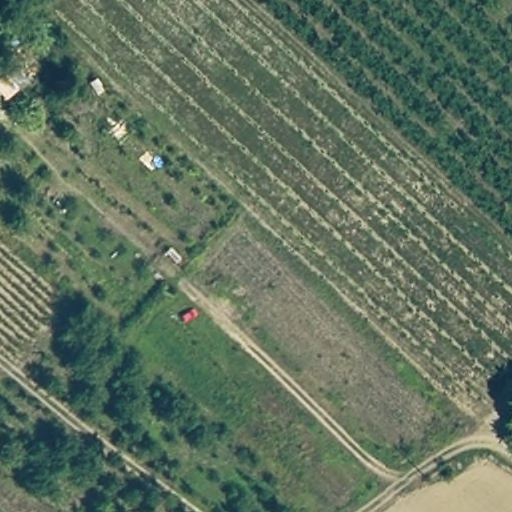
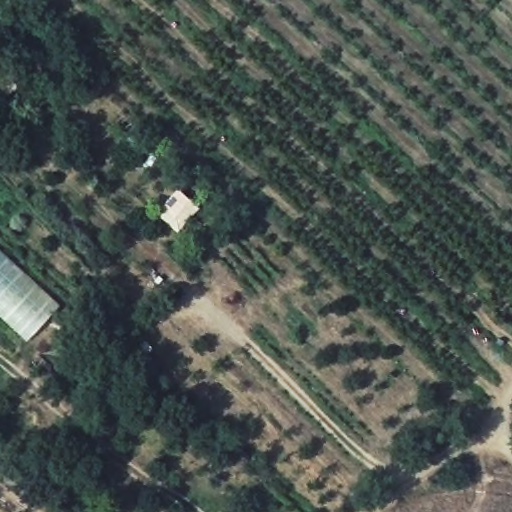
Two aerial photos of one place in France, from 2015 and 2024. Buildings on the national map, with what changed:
new [(60,306),(26,342),(0,318),(0,250),(60,306)]

